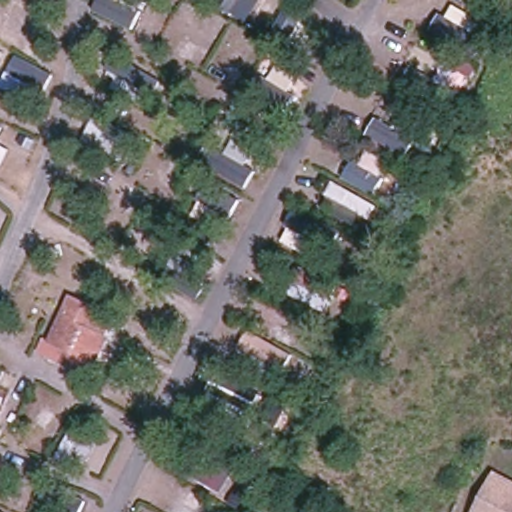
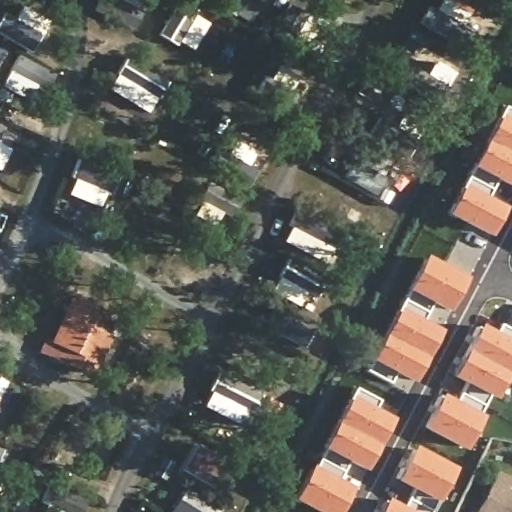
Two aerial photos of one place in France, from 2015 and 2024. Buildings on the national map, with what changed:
new [(460,185),(470,167),(498,115),(502,106),(512,111),(512,189),(494,181),(485,198),(502,207),(486,237),(445,215),(460,185)]
new [(367,361),(394,308),(404,292),(423,256),(464,278),(446,312),(429,303),(420,320),(438,330),(411,384),(391,374),(387,383),(363,371),(367,361)]
unchanged [(45,347),(70,301),(74,294),(109,313),(114,316),(104,335),(106,336),(93,359),(87,370),(82,368),(45,347)]
new [(512,342),(512,362),(492,400),(449,377),(477,324),(512,342)]
new [(481,416),(462,451),(420,428),(439,393),(481,416)]
new [(319,448),(347,395),(390,418),(362,472),(319,448)]
new [(453,468),(435,503),(393,481),(411,446),(453,468)]
new [(289,500),(308,465),(351,487),(338,512),(313,512),(289,500)]
unchanged [(494,477),(512,486),(512,512),(477,512),(494,477)]
new [(411,512),(376,512),(384,497),(411,512)]

